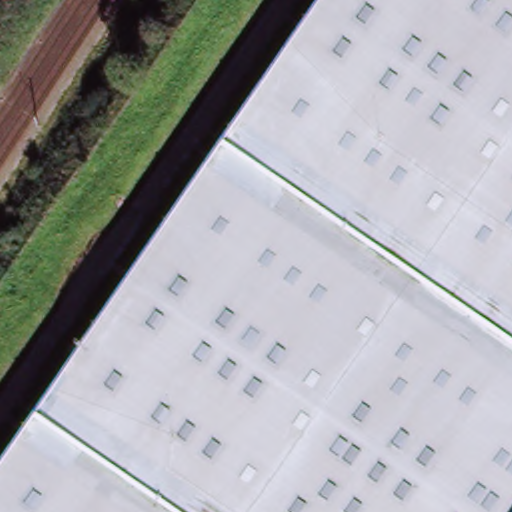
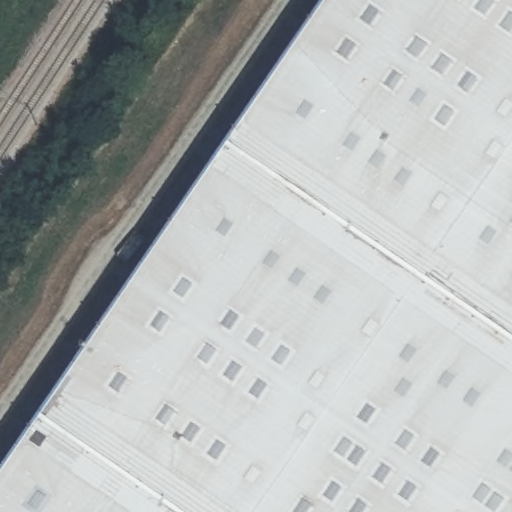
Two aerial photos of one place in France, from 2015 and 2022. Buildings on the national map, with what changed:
unchanged [(330,0),(512,0),(512,512),(0,512),(0,481),(330,0)]

